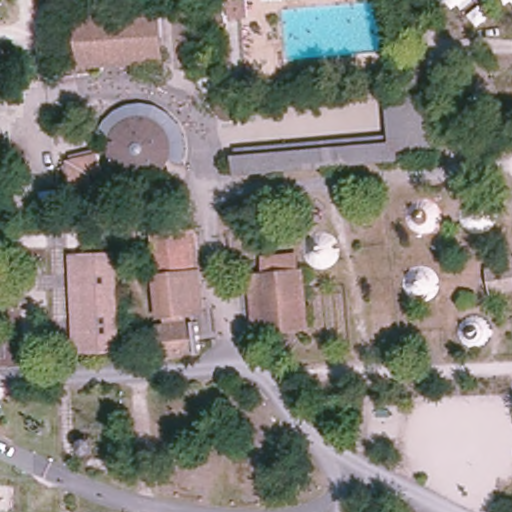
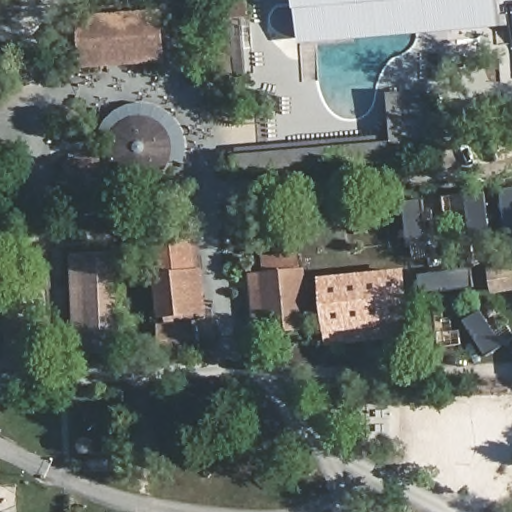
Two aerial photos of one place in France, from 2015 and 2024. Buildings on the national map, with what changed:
unchanged [(253,20),(231,23),(230,3),(204,5),(204,0),(252,0),(253,20)]
new [(500,26),(298,42),(295,0),(498,0),(500,26)]
unchanged [(69,14),(152,10),(157,61),(73,67),(69,14)]
unchanged [(407,91),(407,97),(427,95),(432,155),(414,157),(403,163),(238,174),(238,148),(391,135),(389,93),(407,91)]
unchanged [(170,157),(155,178),(133,178),(111,164),(109,149),(115,129),(132,116),(151,119),(165,130),(173,140),(170,157)]
unchanged [(92,156),(99,173),(95,177),(100,199),(76,204),(66,159),(92,156)]
unchanged [(144,210),(144,185),(172,184),(173,210),(144,210)]
unchanged [(153,235),(195,232),(198,272),(156,278),(153,235)]
unchanged [(110,252),(117,350),(68,352),(60,256),(110,252)]
unchanged [(257,273),(255,257),(292,253),(295,266),(298,266),(304,329),(250,332),(244,275),(257,273)]
unchanged [(484,269),(512,265),(512,295),(489,298),(484,269)]
new [(325,346),(318,279),(405,270),(412,337),(325,346)]
new [(153,274),(155,274),(156,278),(198,272),(203,271),(207,317),(186,323),(158,325),(153,274)]
new [(500,347),(485,358),(464,323),(480,312),(500,347)]
unchanged [(186,323),(188,358),(154,360),(153,325),(186,323)]

